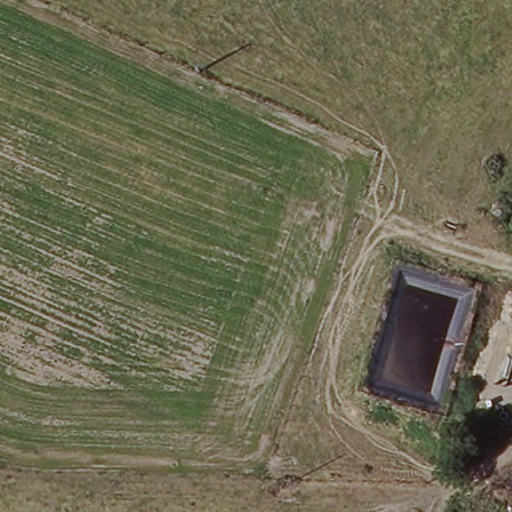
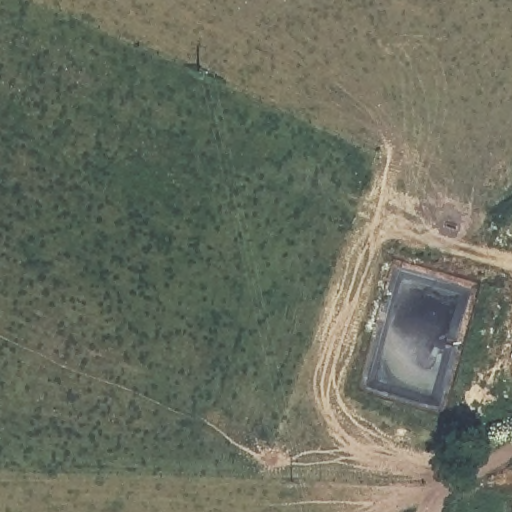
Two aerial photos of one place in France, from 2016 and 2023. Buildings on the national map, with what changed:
[]

